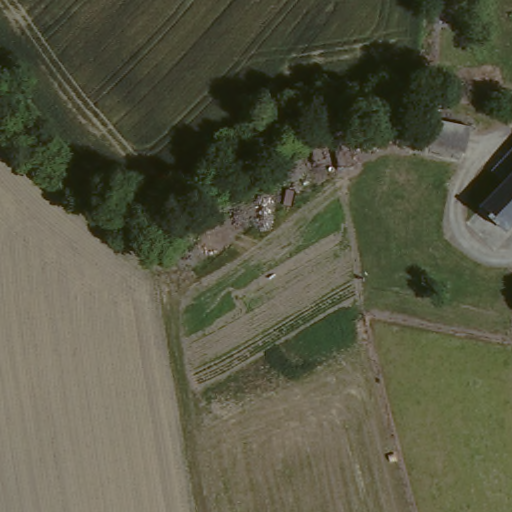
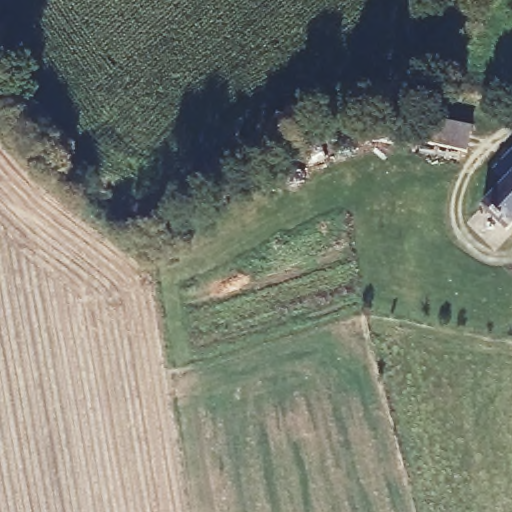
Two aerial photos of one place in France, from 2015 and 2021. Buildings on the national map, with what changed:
unchanged [(419,143),(425,118),(466,128),(463,154),(419,143)]
unchanged [(500,233),(474,206),(503,178),(491,165),(512,146),(512,222),(500,233)]

